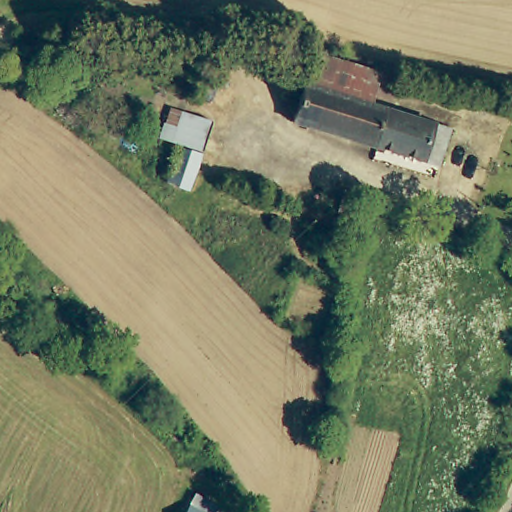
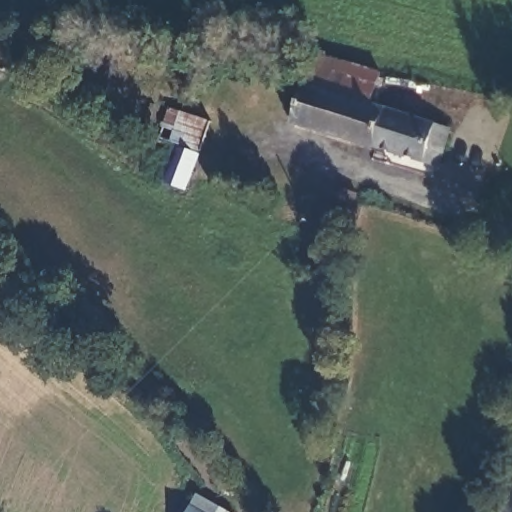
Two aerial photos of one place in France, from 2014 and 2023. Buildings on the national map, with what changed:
unchanged [(381,72),(371,104),(305,82),(315,51),(381,72)]
unchanged [(375,145),(293,119),(305,82),(371,104),(387,109),(375,145)]
unchanged [(164,135),(172,106),(195,112),(213,118),(205,147),(195,186),(175,180),(186,141),(164,135)]
unchanged [(387,109),(451,129),(440,165),(375,145),(387,109)]
unchanged [(357,193),(352,217),(337,214),(342,193),(343,188),(357,193)]
unchanged [(187,512),(191,504),(205,512),(187,512)]

